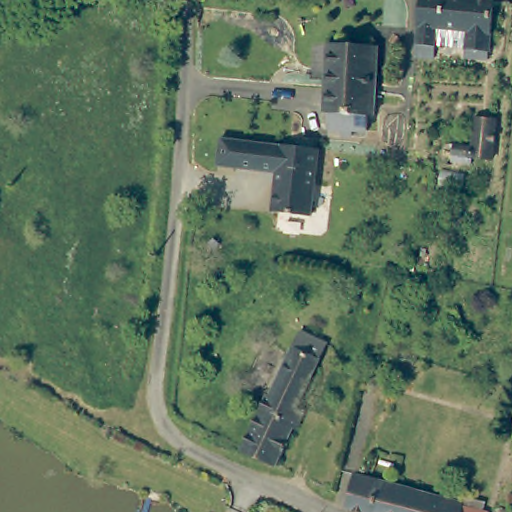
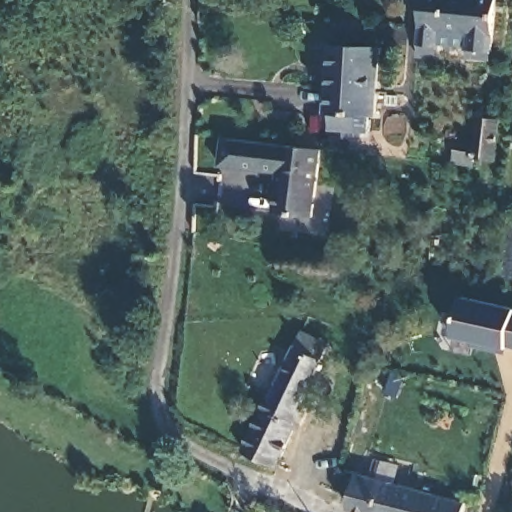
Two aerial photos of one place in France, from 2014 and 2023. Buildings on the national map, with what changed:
unchanged [(464,57),(465,31),(435,29),(433,59),(415,57),(420,0),(493,0),(487,59),(464,57)]
unchanged [(327,112),(324,112),(328,45),(376,47),(373,115),(365,115),(365,134),(326,132),(327,112)]
unchanged [(451,146),(469,149),(475,120),(495,122),(487,164),(467,161),(449,158),(451,146)]
unchanged [(310,217),(272,212),(277,171),(218,165),(220,139),(318,148),(310,217)]
new [(463,297),(512,308),(512,346),(508,346),(508,347),(497,345),(496,350),(474,345),(475,340),(454,336),(463,297)]
unchanged [(300,412),(273,467),(242,452),(267,399),(271,401),(293,352),(304,333),(327,344),(317,363),(319,364),(297,411),(300,412)]
unchanged [(481,512),(351,512),(358,483),(397,492),(461,504),(461,507),(481,512)]
unchanged [(501,507),(504,509),(505,510),(506,512),(490,512),(492,510),(494,508),(497,507),(498,507),(501,507)]

